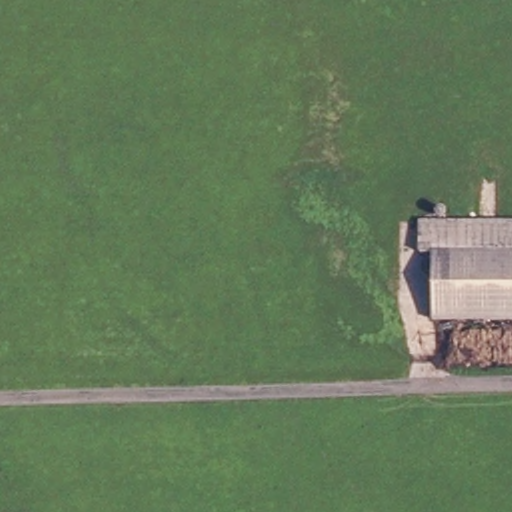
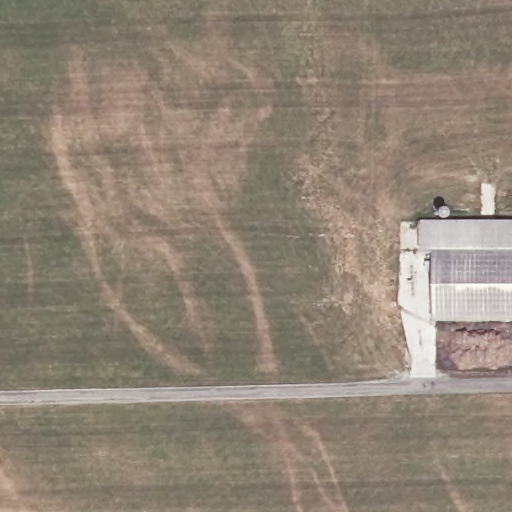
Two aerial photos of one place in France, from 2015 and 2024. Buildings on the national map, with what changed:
unchanged [(437,323),(437,257),(420,256),(421,222),(512,222),(512,323),(437,323)]

